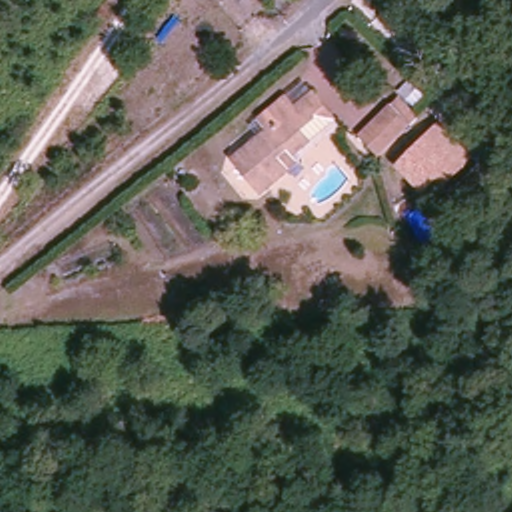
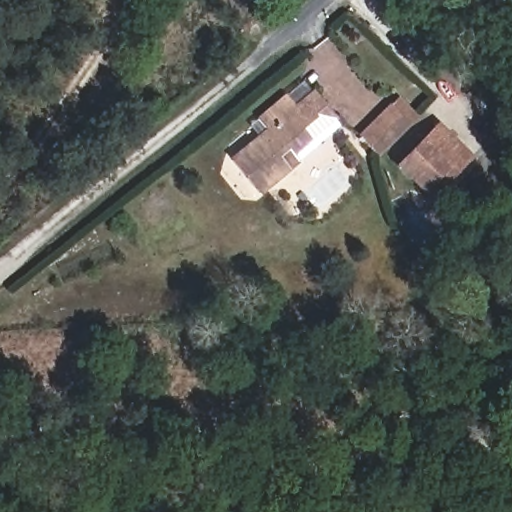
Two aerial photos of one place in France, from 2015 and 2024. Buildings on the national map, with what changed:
unchanged [(288,141),(275,152),(287,167),(257,191),(228,154),(264,126),(257,117),(286,93),(295,105),(302,99),(314,90),(337,118),(314,136),(295,150),(288,141)]
unchanged [(380,157),(360,136),(390,103),(412,123),(380,157)]
unchanged [(430,202),(397,167),(441,119),(476,157),(430,202)]

